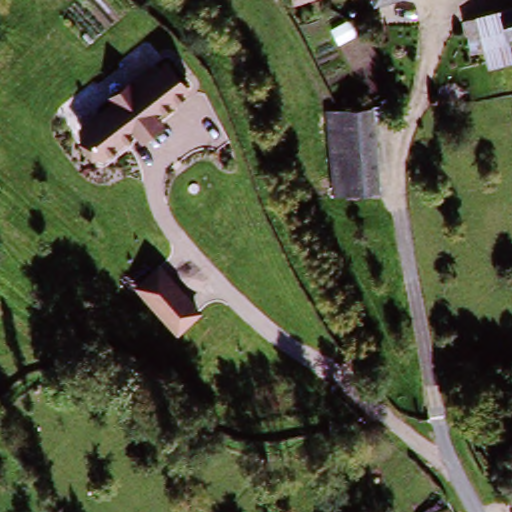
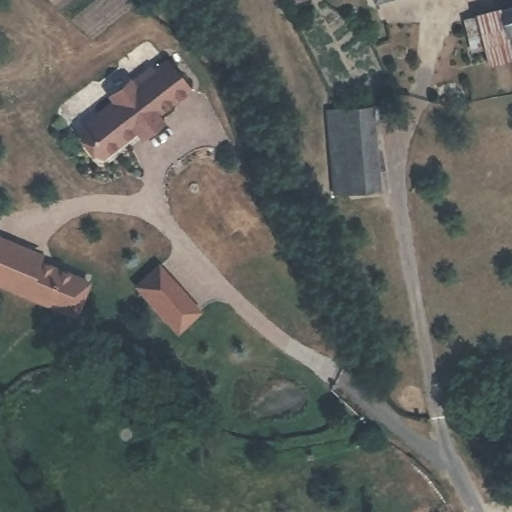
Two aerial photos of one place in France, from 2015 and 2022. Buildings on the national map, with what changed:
unchanged [(290,0),(313,0),(293,5),(290,0)]
unchanged [(370,0),(384,0),(370,4),(370,0)]
unchanged [(512,61),(487,68),(480,41),(512,31),(505,9),(512,8),(512,61)]
unchanged [(512,31),(470,44),(462,21),(486,14),(505,9),(512,31)]
unchanged [(190,90),(158,116),(163,124),(140,143),(135,135),(97,165),(72,134),(111,104),(106,97),(130,78),(134,85),(167,59),(190,90)]
unchanged [(370,123),(385,189),(349,197),(342,198),(323,116),(327,114),(367,104),(377,102),(382,120),(370,123)]
new [(92,282),(73,318),(0,287),(0,237),(92,282)]
unchanged [(201,312),(177,335),(132,287),(157,264),(201,312)]

